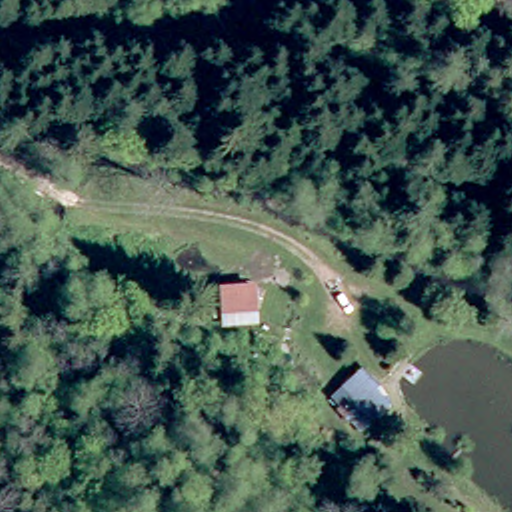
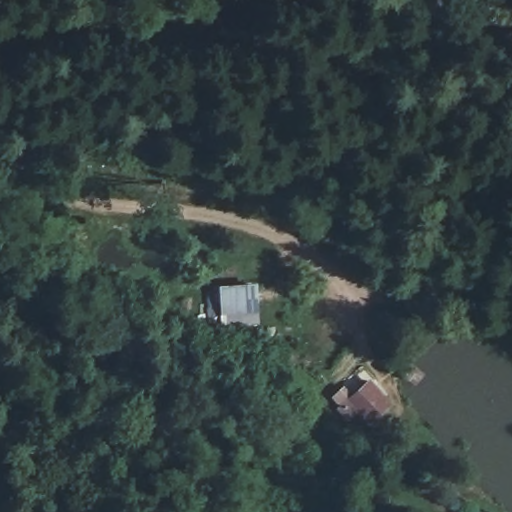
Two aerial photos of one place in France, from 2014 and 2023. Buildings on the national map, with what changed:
unchanged [(260,316),(223,316),(220,287),(258,287),(260,316)]
unchanged [(397,405),(373,428),(355,410),(348,417),(330,397),(366,367),(397,405)]

